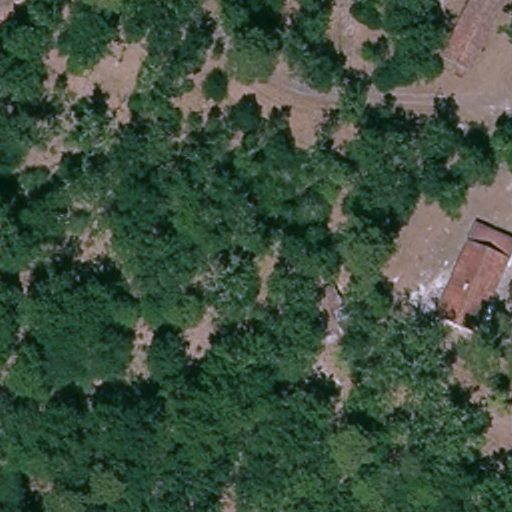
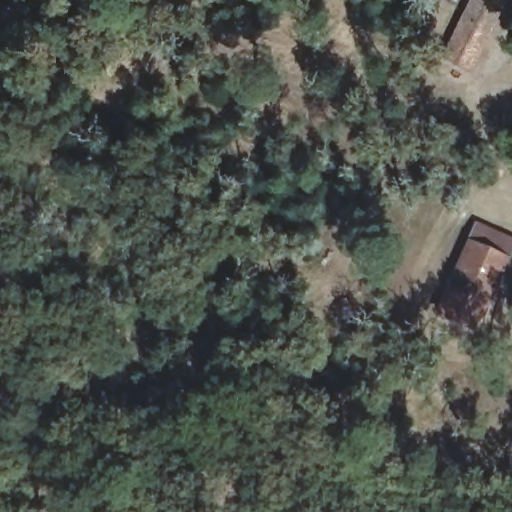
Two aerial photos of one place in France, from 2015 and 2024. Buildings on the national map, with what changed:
unchanged [(440,64),(477,0),(512,0),(512,2),(465,80),(440,64)]
unchanged [(470,325),(440,307),(479,229),(510,246),(470,325)]

